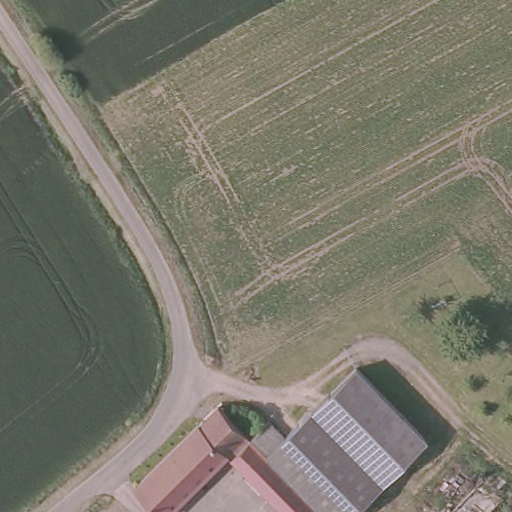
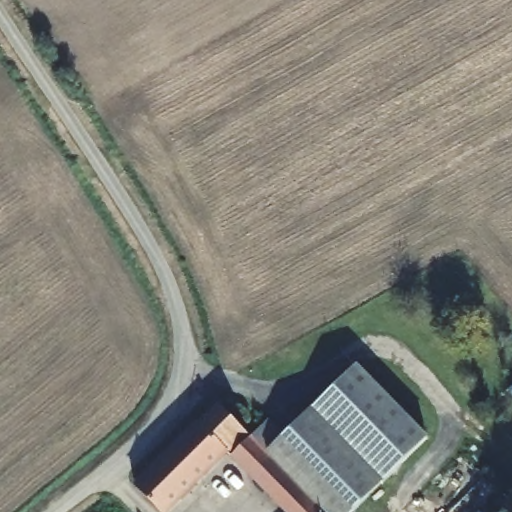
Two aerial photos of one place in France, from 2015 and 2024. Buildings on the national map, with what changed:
unchanged [(279,439),(351,371),(421,442),(353,512),(316,512),(262,456),(279,439)]
unchanged [(168,512),(154,512),(131,490),(213,408),(247,441),(264,425),(279,439),(262,456),(316,512),(277,512),(223,457),(168,512)]

